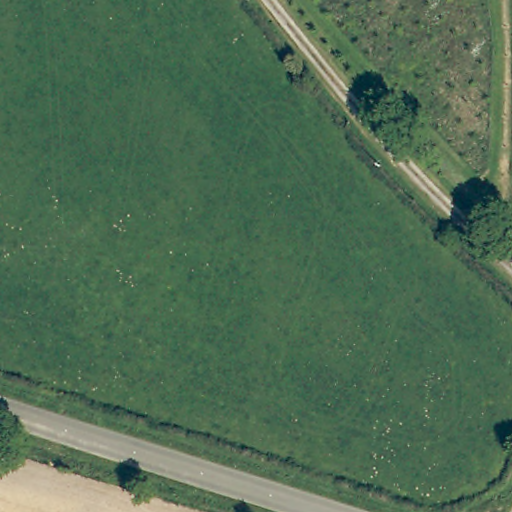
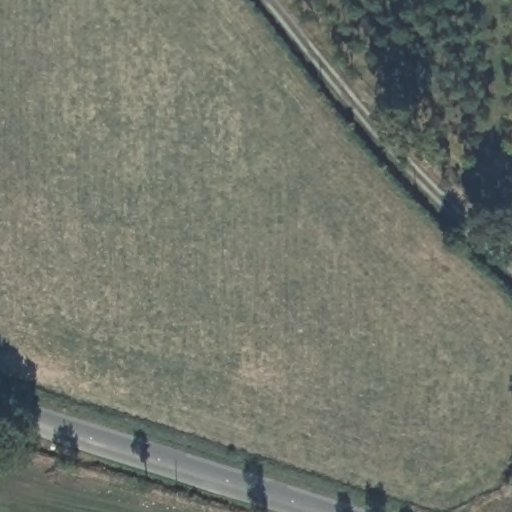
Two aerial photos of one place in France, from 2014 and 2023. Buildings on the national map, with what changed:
[]

